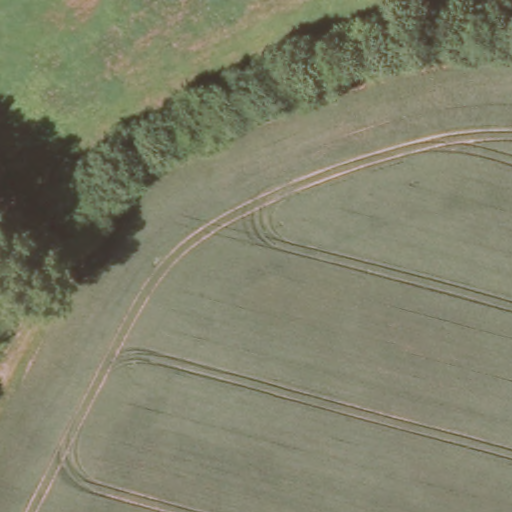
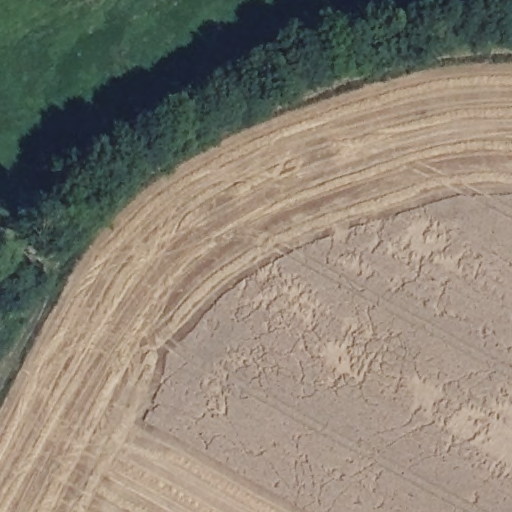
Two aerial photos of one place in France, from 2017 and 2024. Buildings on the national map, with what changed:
[]

